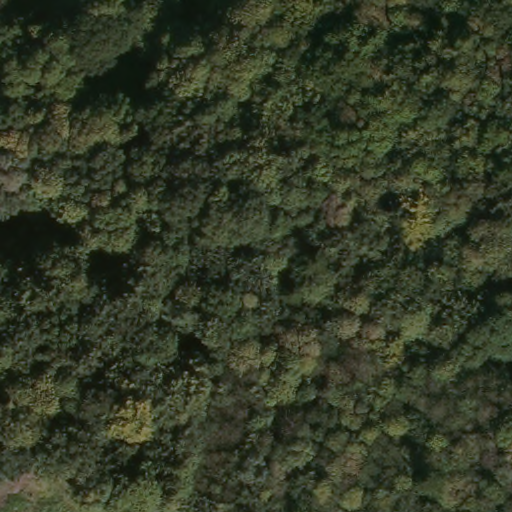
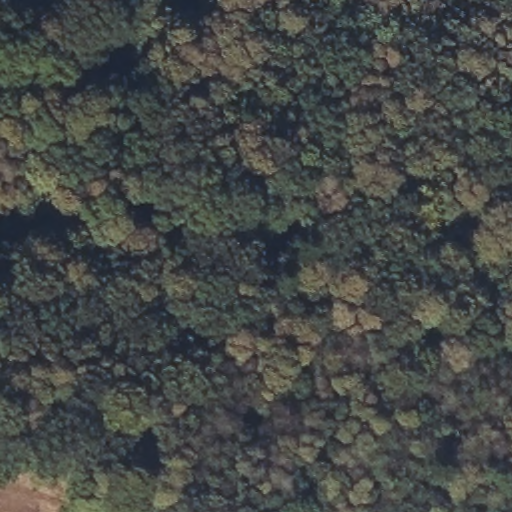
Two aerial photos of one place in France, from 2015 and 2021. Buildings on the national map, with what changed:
[]

